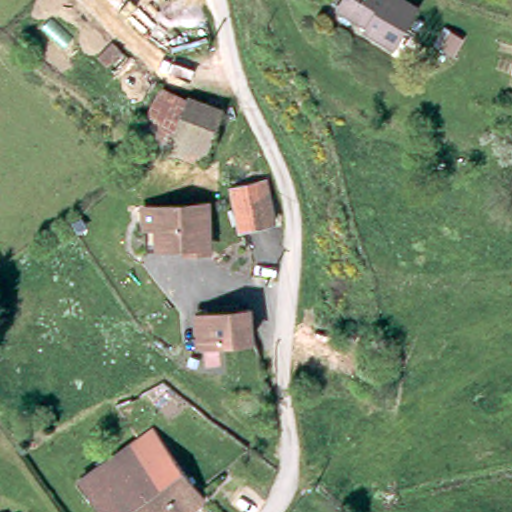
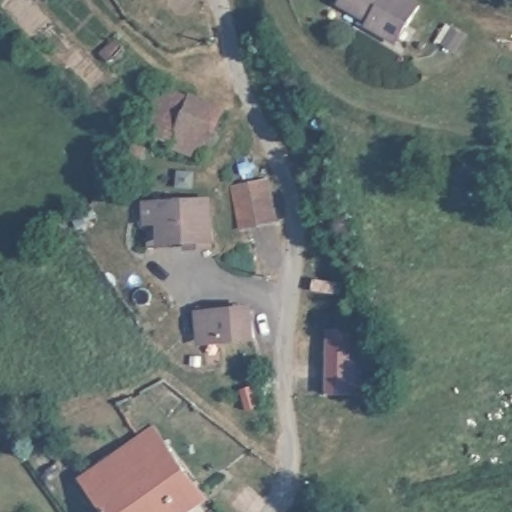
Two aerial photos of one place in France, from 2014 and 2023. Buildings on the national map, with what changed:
unchanged [(363,22),(369,12),(360,7),(357,12),(338,0),(414,0),(418,2),(394,41),(363,22)]
unchanged [(161,79),(188,91),(169,140),(140,128),(138,127),(161,79)]
unchanged [(188,91),(222,107),(205,156),(169,140),(188,91)]
unchanged [(268,178),(277,224),(239,231),(230,186),(268,178)]
unchanged [(206,205),(207,247),(188,248),(187,241),(145,242),(144,207),(206,205)]
unchanged [(208,336),(206,310),(261,309),(263,327),(264,334),(208,336)]
new [(327,395),(328,330),(364,332),(361,395),(327,395)]
unchanged [(206,499),(190,512),(103,512),(80,480),(153,427),(206,499)]
unchanged [(3,512),(0,512),(0,510),(2,509),(3,512)]

